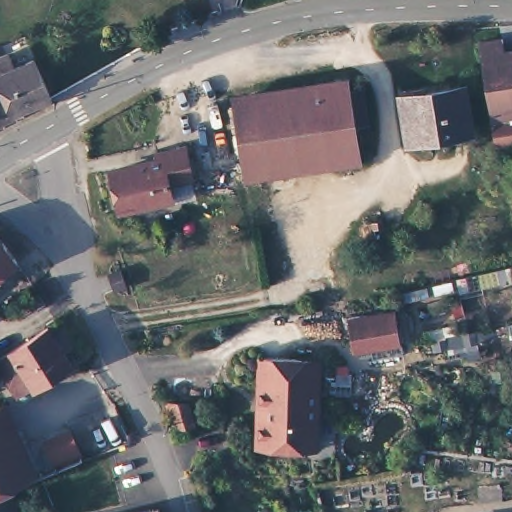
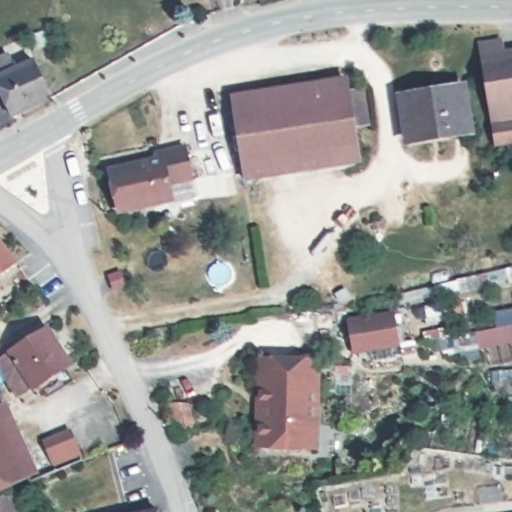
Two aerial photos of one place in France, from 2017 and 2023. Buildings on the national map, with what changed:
unchanged [(496,45),(500,65),(512,63),(512,146),(492,149),(473,46),(496,45)]
unchanged [(46,107),(8,122),(0,106),(0,63),(4,61),(10,75),(30,67),(46,107)]
unchanged [(227,105),(340,87),(350,146),(243,164),(236,165),(227,105)]
unchanged [(458,89),(466,132),(404,142),(396,100),(458,89)]
unchanged [(350,146),(354,166),(245,184),(240,185),(236,165),(243,164),(350,146)]
unchanged [(154,167),(152,160),(180,154),(186,187),(164,192),(167,207),(114,219),(105,177),(154,167)]
unchanged [(12,271),(0,280),(0,255),(12,271)]
unchanged [(390,320),(395,350),(350,357),(346,327),(390,320)]
unchanged [(67,367),(30,390),(24,381),(9,390),(0,375),(0,357),(44,330),(67,367)]
unchanged [(265,393),(256,392),(257,363),(305,365),(314,365),(314,390),(313,409),(265,405),(265,393)]
unchanged [(167,404),(190,405),(197,433),(178,439),(167,404)]
unchanged [(254,454),(255,448),(255,426),(264,425),(265,405),(313,409),(312,428),(311,455),(254,454)]
unchanged [(13,452),(64,431),(78,461),(27,483),(24,480),(0,491),(0,425),(13,452)]
unchanged [(76,480),(79,492),(54,500),(50,487),(76,480)]
unchanged [(8,512),(0,512),(0,498),(1,497),(8,512)]

